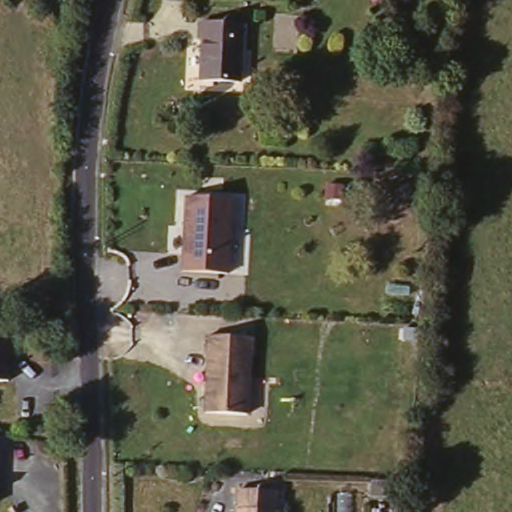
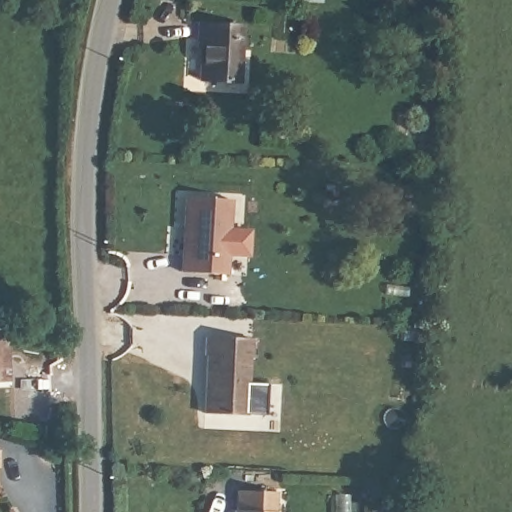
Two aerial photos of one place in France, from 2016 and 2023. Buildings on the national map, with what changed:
unchanged [(240,22),(238,79),(214,78),(216,39),(213,37),(214,21),(240,22)]
unchanged [(229,193),(224,271),(181,267),(184,190),(229,193)]
unchanged [(7,377),(0,378),(0,328),(4,328),(7,377)]
unchanged [(209,335),(255,338),(254,357),(252,357),(249,416),(208,413),(210,354),(208,354),(209,335)]
unchanged [(3,466),(0,466),(0,448),(3,448),(3,466)]
unchanged [(237,508),(237,487),(275,489),(274,510),(276,510),(276,512),(234,512),(234,508),(237,508)]

